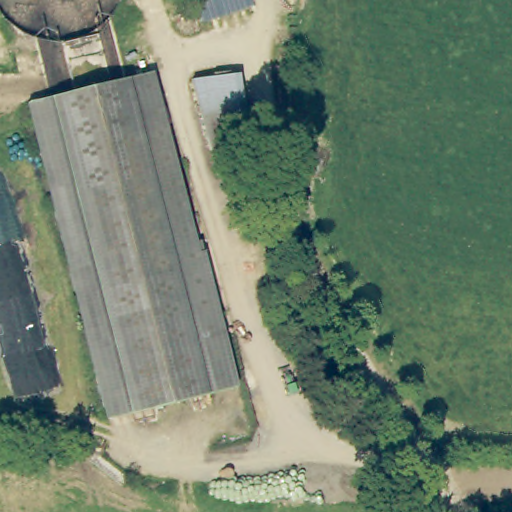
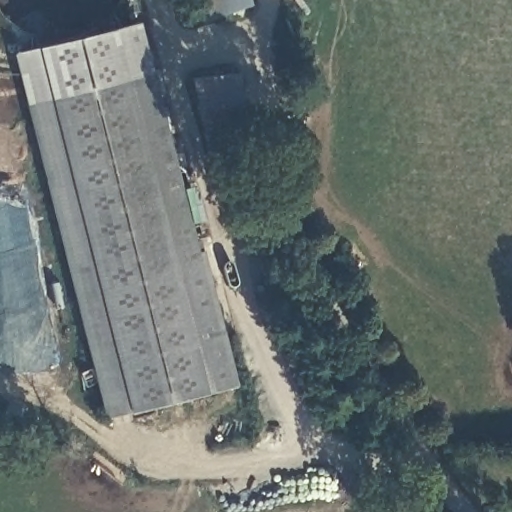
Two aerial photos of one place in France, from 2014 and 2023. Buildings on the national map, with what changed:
unchanged [(193,0),(249,0),(251,7),(200,22),(193,0)]
new [(13,53),(137,22),(149,74),(25,105),(13,53)]
unchanged [(192,80),(239,72),(245,118),(200,127),(192,80)]
unchanged [(149,74),(191,245),(197,243),(233,387),(104,420),(25,105),(149,74)]

